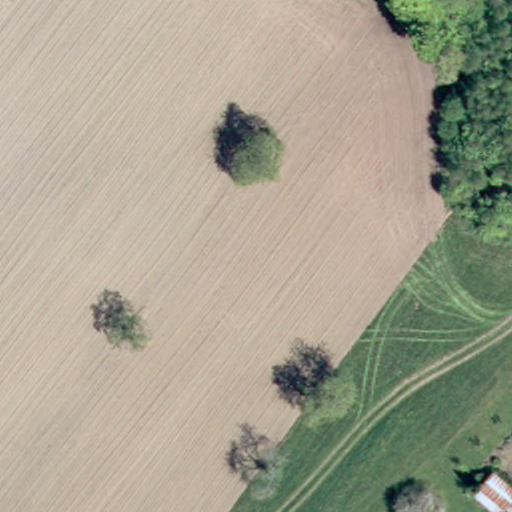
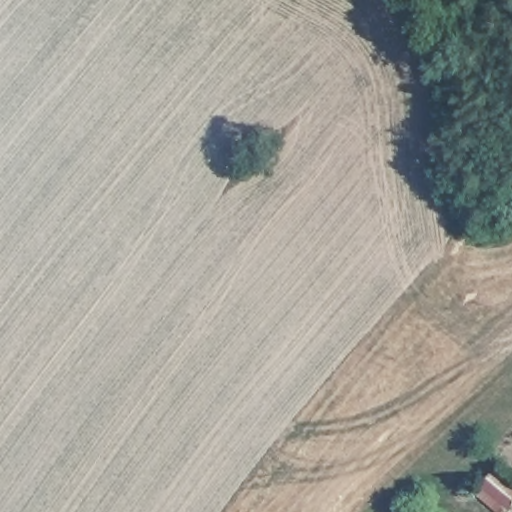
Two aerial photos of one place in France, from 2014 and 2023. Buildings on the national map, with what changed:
unchanged [(509,510),(487,489),(500,476),(512,489),(512,507),(509,510)]

